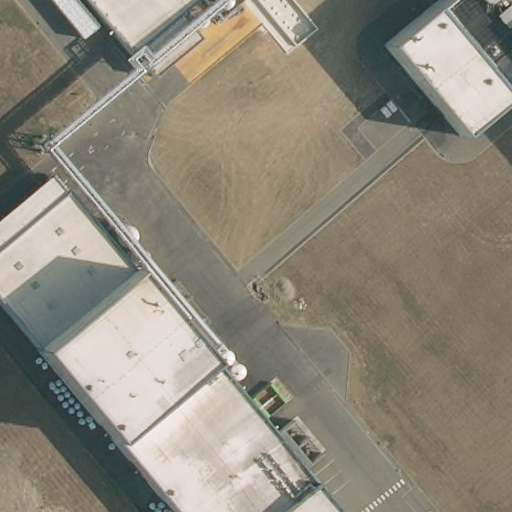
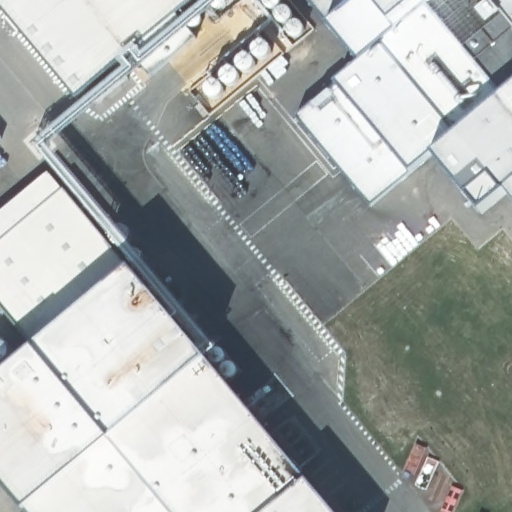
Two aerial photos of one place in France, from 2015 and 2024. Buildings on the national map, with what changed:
new [(79,100),(0,5),(0,0),(84,0),(130,54),(79,100)]
unchanged [(84,0),(193,0),(130,54),(84,0)]
new [(451,0),(440,10),(362,70),(305,0),(451,0)]
unchanged [(440,10),(451,0),(512,0),(512,95),(503,85),(440,10)]
demolished [(458,134),(383,47),(432,9),(506,97),(458,134)]
new [(503,85),(425,152),(367,207),(297,122),(362,70),(440,10),(503,85)]
new [(472,212),(425,152),(503,85),(512,95),(512,208),(495,187),(472,212)]
unchanged [(112,442),(38,348),(0,303),(0,216),(50,175),(130,272),(207,360),(307,481),(330,512),(173,512),(112,442)]
new [(27,510),(0,478),(0,378),(38,348),(112,442),(173,512),(29,512),(27,510)]

